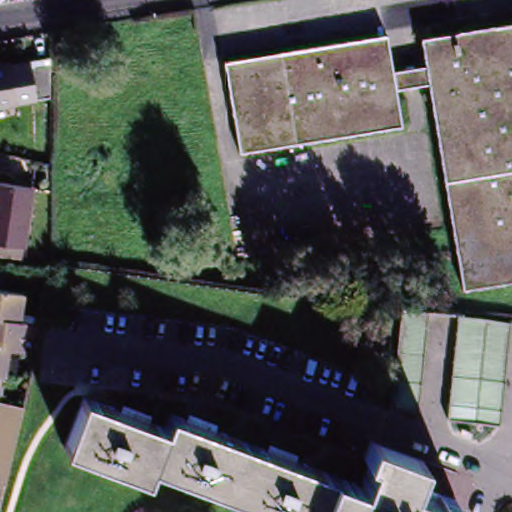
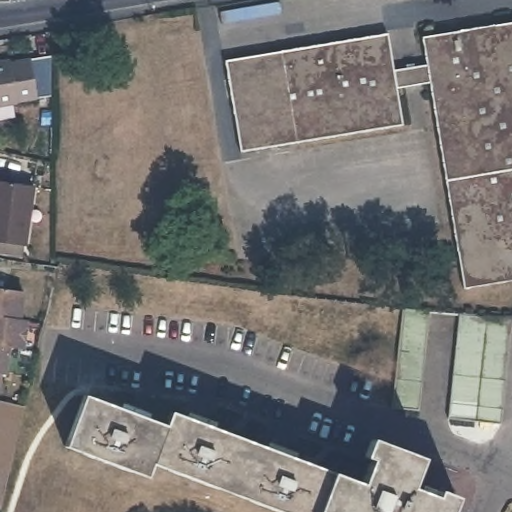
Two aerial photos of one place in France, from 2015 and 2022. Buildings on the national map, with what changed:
unchanged [(463,291),(427,86),(396,91),(402,127),(240,154),(225,63),(388,35),(394,72),(425,67),(420,40),(512,24),(512,283),(463,291)]
unchanged [(40,97),(0,105),(0,63),(40,58),(40,97)]
unchanged [(0,244),(0,184),(33,189),(25,248),(23,259),(0,256),(0,244)]
unchanged [(0,371),(0,343),(0,316),(0,286),(22,289),(18,318),(25,319),(22,346),(10,344),(7,344),(4,371),(0,371)]
unchanged [(429,314),(419,415),(391,412),(401,311),(429,314)]
unchanged [(512,324),(501,427),(447,422),(458,319),(512,324)]
unchanged [(0,479),(0,465),(0,451),(0,438),(0,424),(0,411),(0,397),(25,402),(22,416),(20,428),(17,442),(15,455),(12,468),(10,481),(7,493),(5,507),(0,506),(0,492),(0,479)]
unchanged [(277,512),(155,466),(150,479),(69,448),(88,399),(170,429),(174,416),(365,488),(375,462),(369,460),(375,443),(425,462),(415,491),(440,500),(442,494),(459,501),(455,512),(277,512)]

